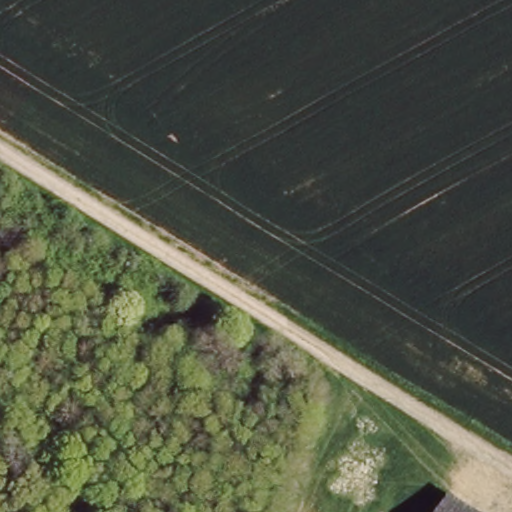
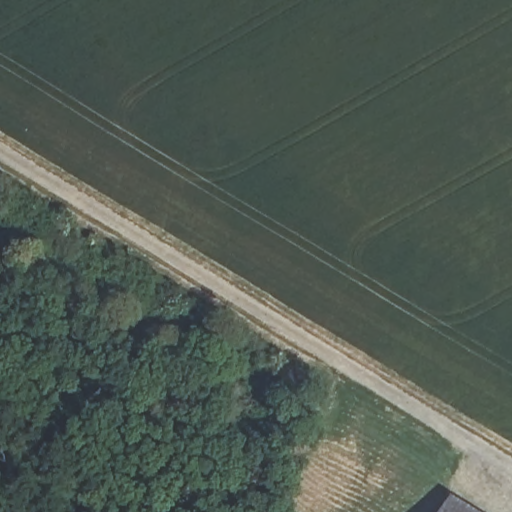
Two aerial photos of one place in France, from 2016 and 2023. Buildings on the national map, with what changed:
unchanged [(485,512),(446,512),(456,494),(485,512)]

